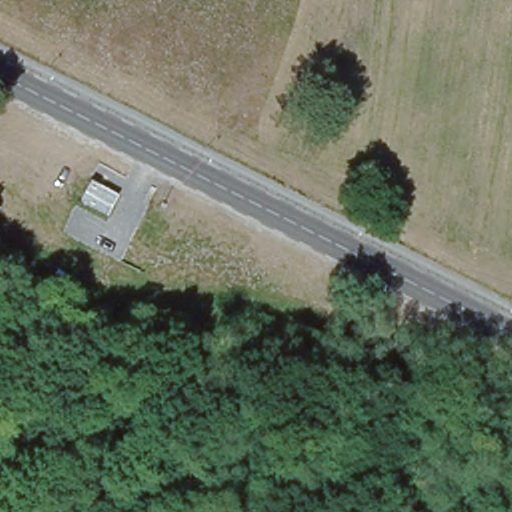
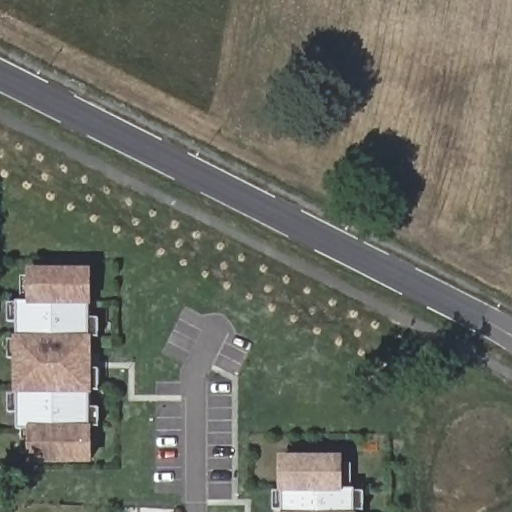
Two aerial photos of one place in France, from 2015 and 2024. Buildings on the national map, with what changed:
new [(90,335),(94,335),(95,393),(91,393),(91,425),(95,425),(95,461),(31,462),(30,428),(20,428),(20,394),(16,394),(15,336),(20,335),(20,301),(30,302),(30,268),(94,268),(95,305),(90,305),(90,335)]
new [(285,493),(280,493),(280,456),(345,455),(345,489),(355,488),(355,512),(285,512),(285,493)]

